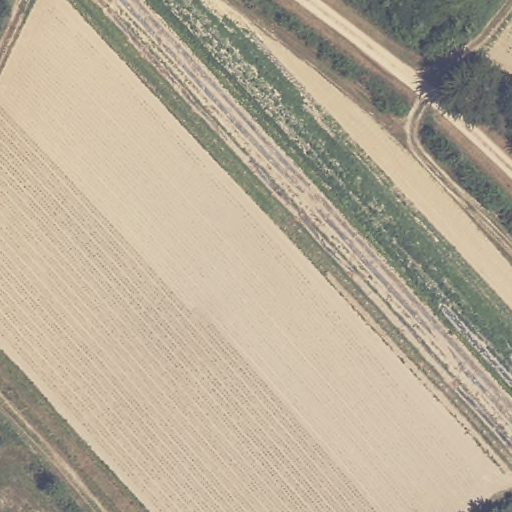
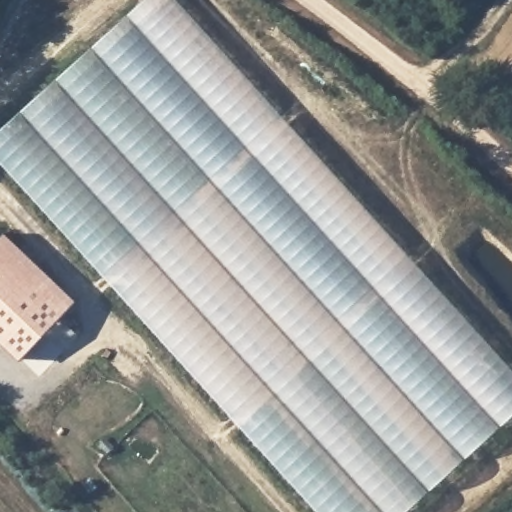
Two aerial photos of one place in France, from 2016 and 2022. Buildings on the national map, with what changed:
new [(176,0),(512,370),(512,419),(407,512),(316,512),(0,165),(0,132),(145,0),(176,0)]
new [(4,232),(77,301),(20,361),(0,343),(0,237),(4,232)]

